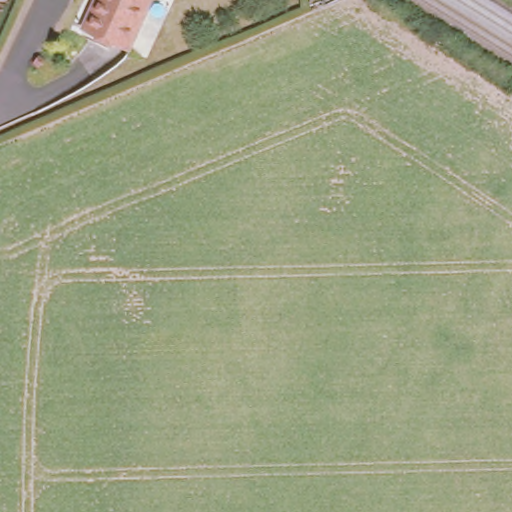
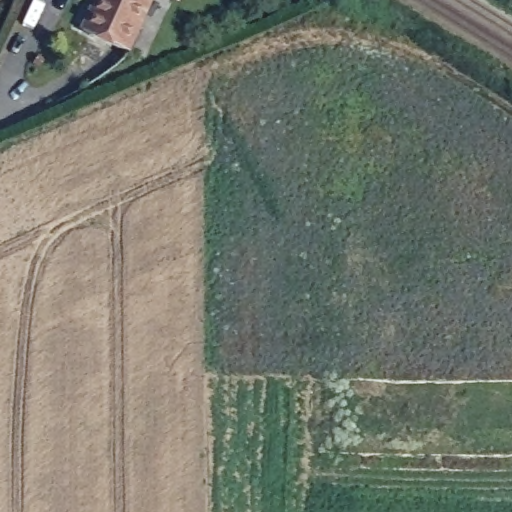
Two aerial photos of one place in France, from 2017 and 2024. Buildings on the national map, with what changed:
unchanged [(150,0),(133,42),(86,24),(96,0),(150,0)]

